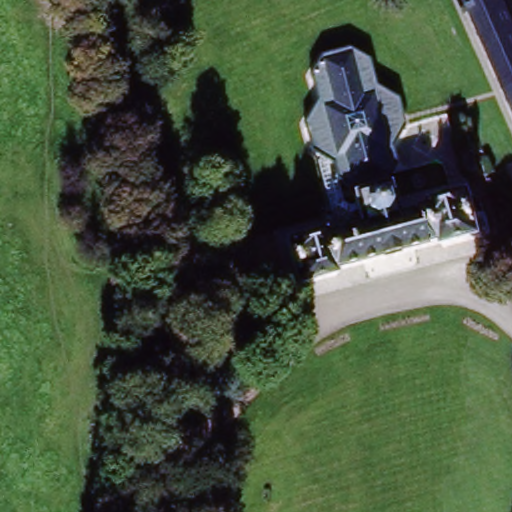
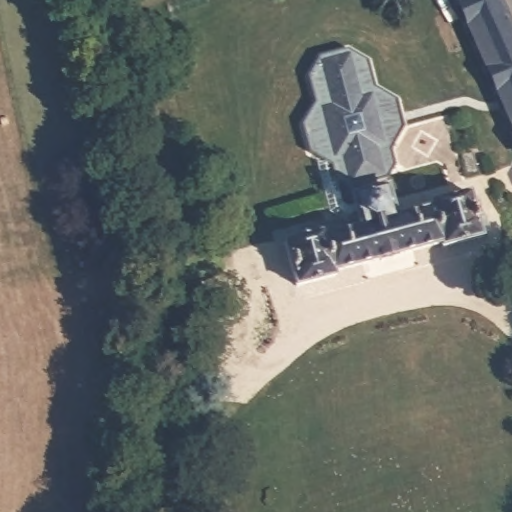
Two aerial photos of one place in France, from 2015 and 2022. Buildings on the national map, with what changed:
unchanged [(512,15),(512,85),(508,87),(472,0),(506,0),(512,15)]
unchanged [(318,56),(347,49),(370,60),(376,87),(397,99),(407,130),(395,150),(401,175),(392,185),(390,190),(399,217),(435,206),(432,197),(475,189),(487,237),(435,251),(433,247),(341,273),(342,277),(300,287),(287,235),(327,224),(329,232),(360,222),(353,200),(350,193),(336,197),(328,166),(306,156),(300,130),(316,106),(308,77),(318,56)]
unchanged [(512,85),(512,97),(508,87),(512,85)]

